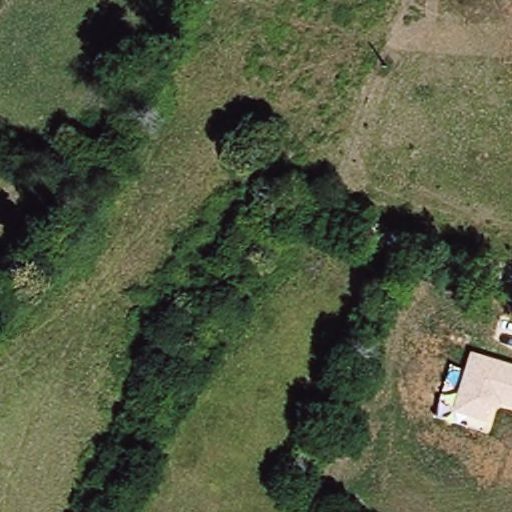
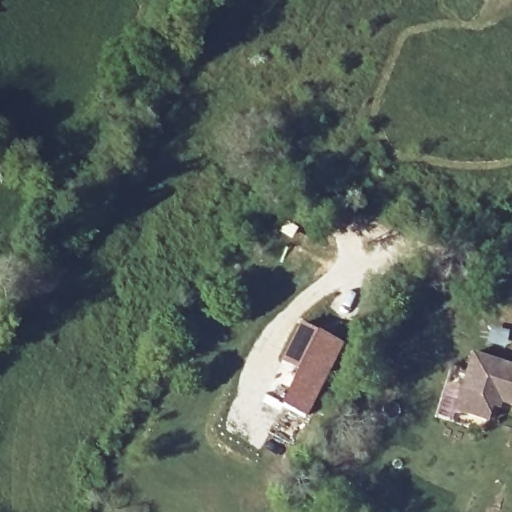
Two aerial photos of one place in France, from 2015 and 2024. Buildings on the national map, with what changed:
new [(298,321),(343,343),(306,418),(280,403),(295,371),(278,362),(298,321)]
unchanged [(512,405),(495,399),(486,423),(451,410),(471,353),(512,365),(512,405)]

